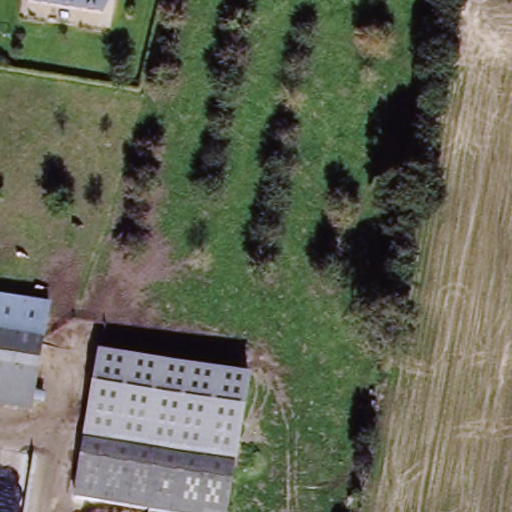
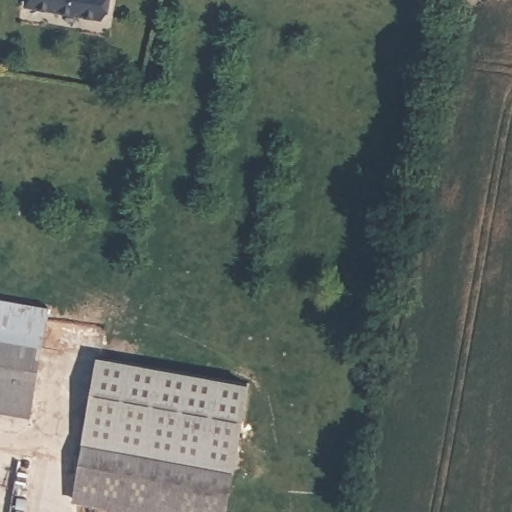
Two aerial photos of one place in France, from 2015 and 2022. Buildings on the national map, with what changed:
unchanged [(25,6),(27,0),(109,0),(105,22),(25,6)]
unchanged [(32,409),(0,404),(0,301),(49,310),(32,409)]
unchanged [(235,467),(89,442),(92,422),(102,358),(250,382),(240,445),(235,467)]
unchanged [(238,469),(228,512),(125,512),(72,502),(82,442),(238,469)]

